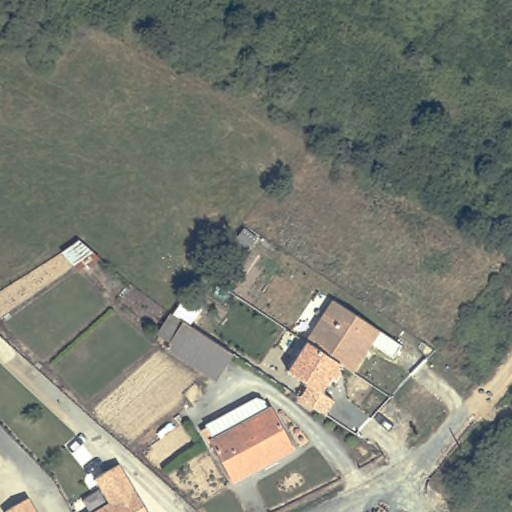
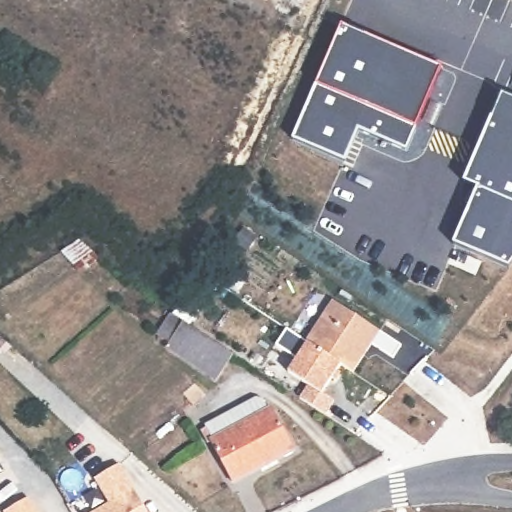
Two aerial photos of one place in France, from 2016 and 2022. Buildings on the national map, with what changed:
new [(416,127),(407,150),(359,130),(344,163),(290,140),(314,85),(340,25),(441,67),(416,127)]
new [(509,269),(451,245),(475,190),(463,185),(502,94),(512,98),(512,265),(509,269)]
unchanged [(349,371),(337,363),(302,340),(329,298),(376,330),(349,370),(349,371)]
unchanged [(174,316),(234,356),(218,381),(168,350),(172,343),(161,335),(174,316)]
unchanged [(302,340),(337,363),(319,391),(331,400),(322,414),(283,388),(291,375),(271,362),(291,332),(302,340)]
unchanged [(269,395),(273,403),(275,402),(298,444),(238,476),(216,435),(218,434),(210,420),(260,392),(269,395)]
unchanged [(145,512),(93,512),(107,503),(92,479),(114,465),(145,512)]
unchanged [(7,508),(30,493),(42,512),(10,512),(7,508)]

